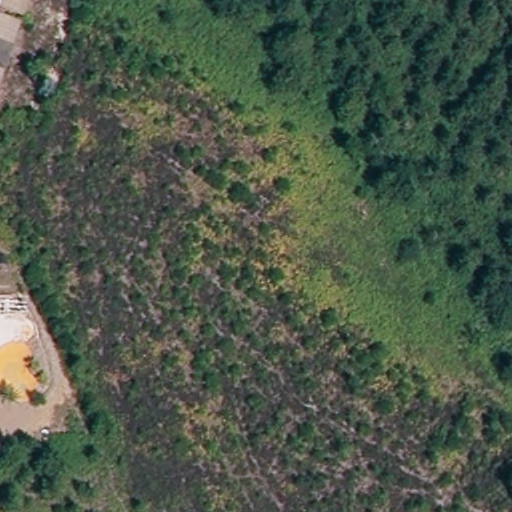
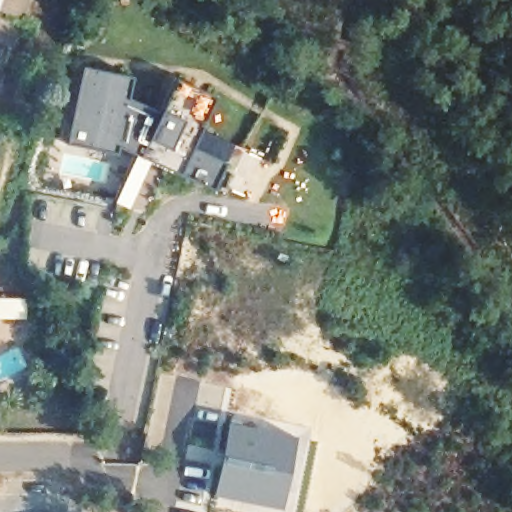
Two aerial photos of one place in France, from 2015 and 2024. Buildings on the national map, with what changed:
unchanged [(17,21),(11,40),(0,36),(0,15),(17,21)]
new [(182,175),(120,147),(118,154),(68,144),(84,67),(134,77),(130,100),(161,113),(178,79),(217,97),(193,147),(228,162),(214,191),(182,175)]
unchanged [(2,70),(0,76),(0,69),(2,70)]
new [(296,437),(281,510),(212,496),(227,422),(296,437)]

